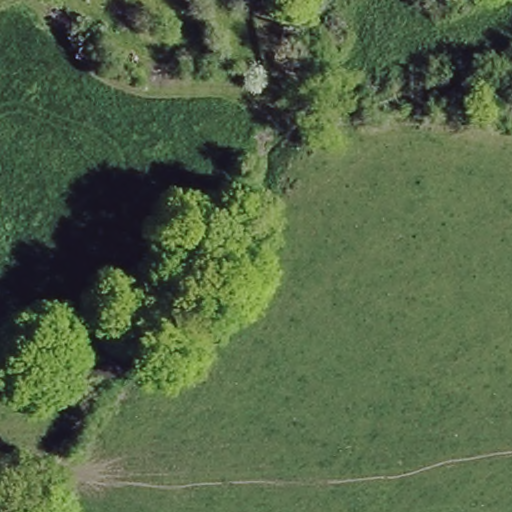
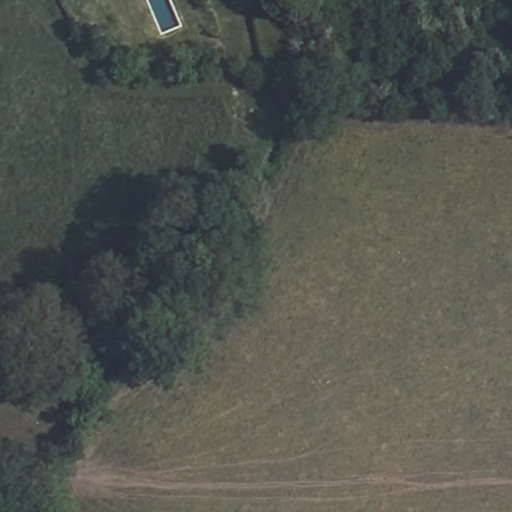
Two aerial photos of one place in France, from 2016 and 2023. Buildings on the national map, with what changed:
[]

